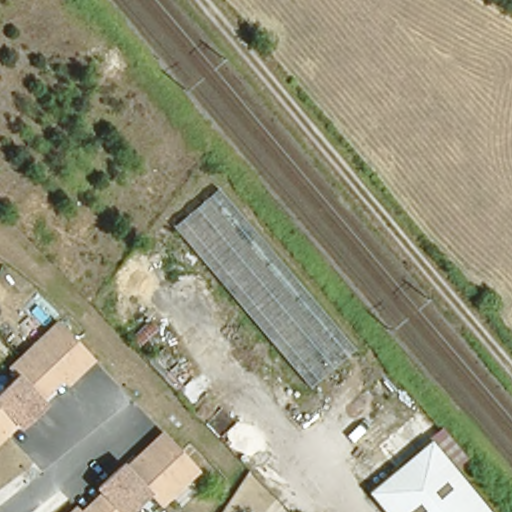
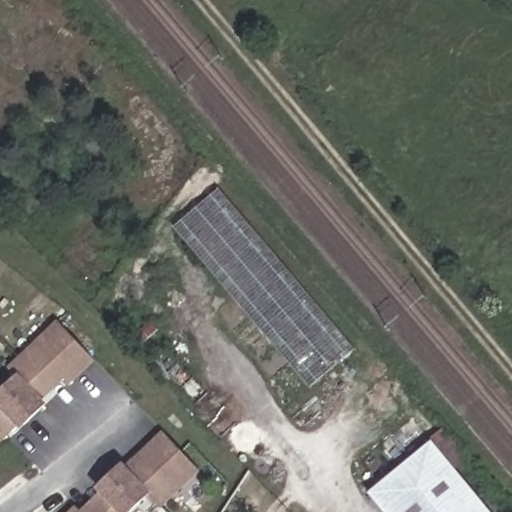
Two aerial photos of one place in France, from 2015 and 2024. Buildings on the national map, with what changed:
unchanged [(349,343),(306,380),(171,220),(215,183),(349,343)]
unchanged [(0,409),(20,389),(12,380),(60,335),(68,340),(0,430),(0,409)]
unchanged [(94,370),(66,397),(56,387),(35,406),(46,416),(36,426),(29,432),(22,438),(16,435),(0,452),(0,430),(68,340),(76,351),(94,370)]
unchanged [(419,426),(426,435),(408,449),(401,440),(419,426)]
unchanged [(431,435),(456,465),(495,512),(390,512),(370,487),(431,435)]
unchanged [(185,461),(184,465),(195,476),(156,512),(146,503),(137,512),(75,512),(119,470),(124,474),(160,437),(177,453),(185,461)]

